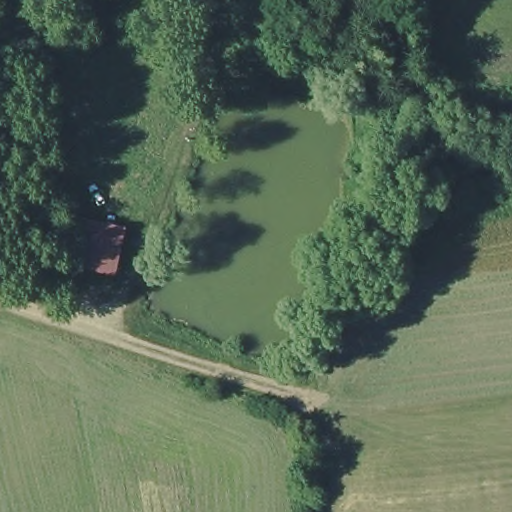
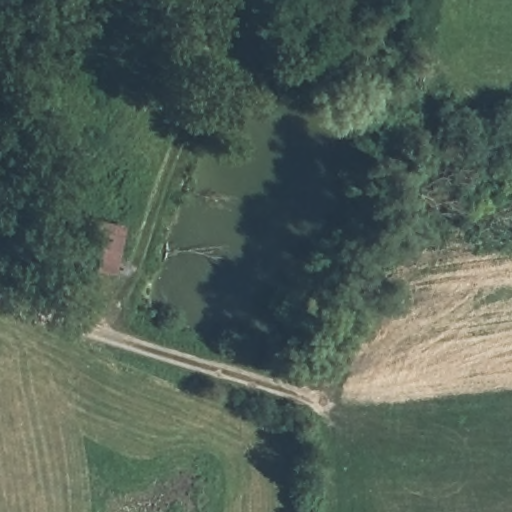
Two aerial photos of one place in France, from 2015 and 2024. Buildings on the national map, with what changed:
unchanged [(116,273),(77,268),(80,223),(126,226),(116,273)]

